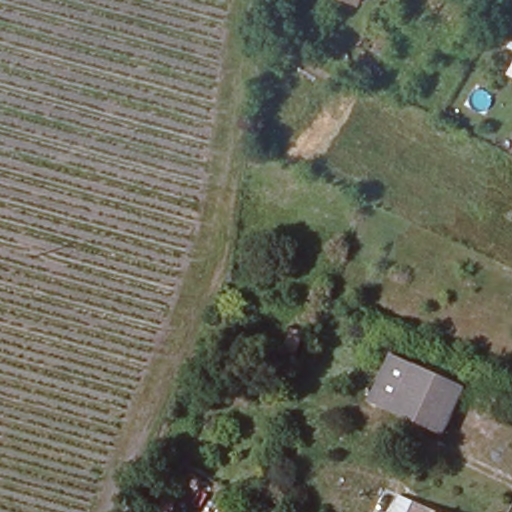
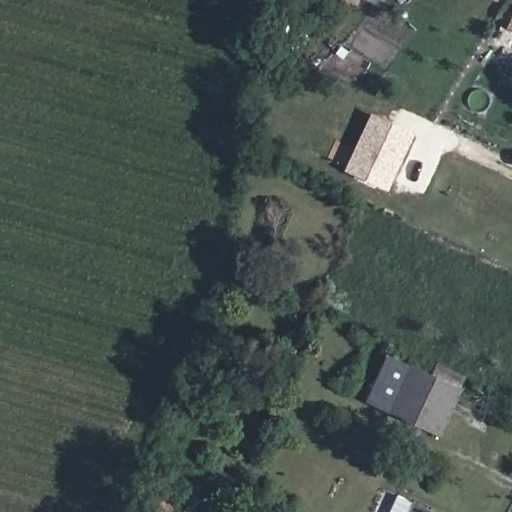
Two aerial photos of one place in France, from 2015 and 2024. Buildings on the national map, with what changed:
unchanged [(356,7),(341,0),(359,0),(356,7)]
unchanged [(512,22),(512,31),(508,29),(512,22)]
new [(387,190),(346,172),(372,114),(414,132),(387,190)]
unchanged [(302,340),(294,357),(280,352),(287,333),(302,340)]
unchanged [(462,392),(441,440),(365,406),(387,358),(462,392)]
unchanged [(396,512),(400,503),(419,512),(396,512)]

